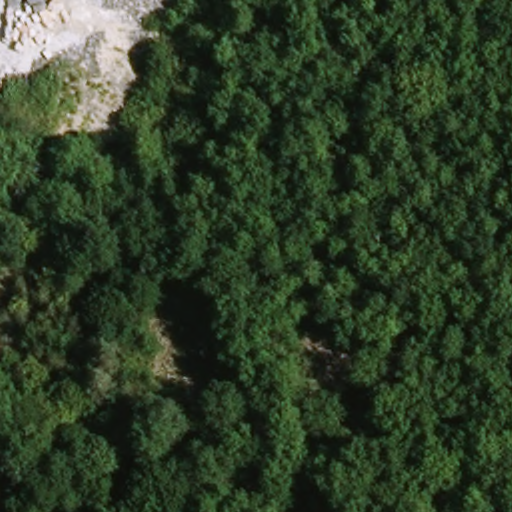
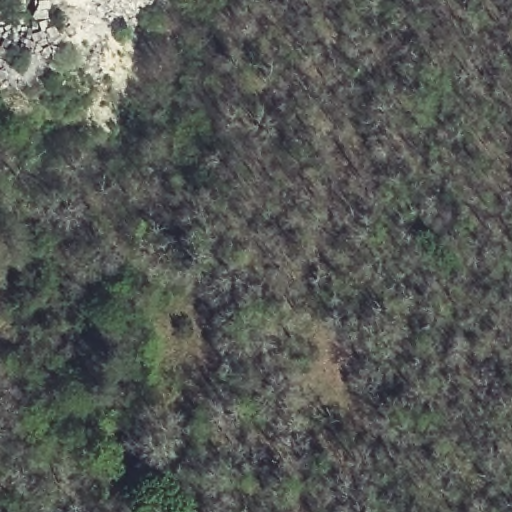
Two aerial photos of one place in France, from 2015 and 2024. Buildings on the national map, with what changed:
[]

